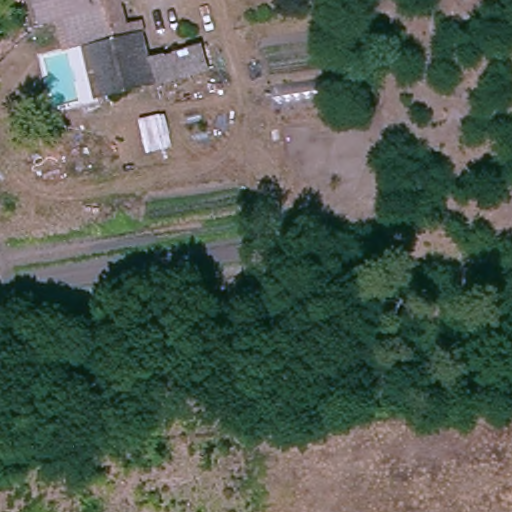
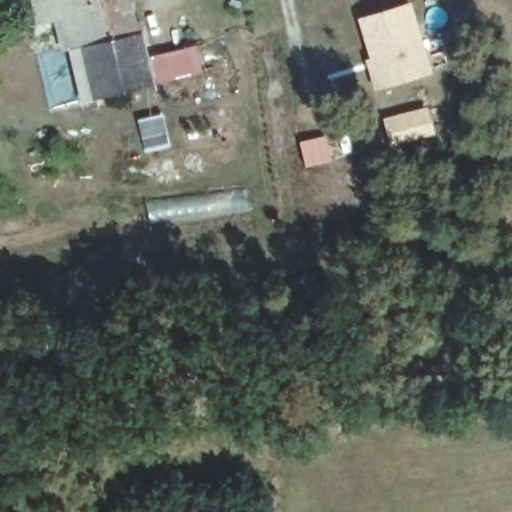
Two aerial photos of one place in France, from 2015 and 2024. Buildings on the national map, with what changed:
unchanged [(69,14),(34,19),(31,0),(116,0),(119,17),(133,16),(140,57),(127,60),(131,85),(82,95),(69,14)]
new [(358,19),(413,3),(433,73),(375,90),(365,61),(370,59),(358,19)]
unchanged [(193,46),(199,73),(131,85),(127,60),(140,57),(193,46)]
new [(390,145),(383,120),(427,107),(435,133),(390,145)]

